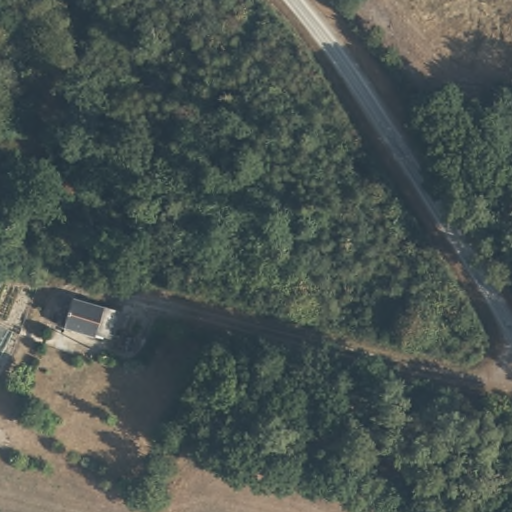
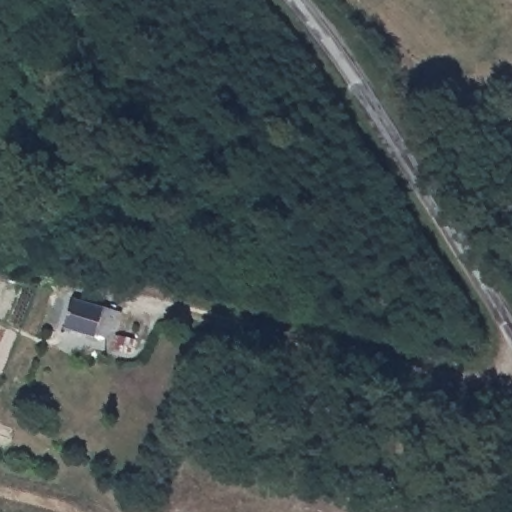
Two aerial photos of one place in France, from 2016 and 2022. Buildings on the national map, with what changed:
unchanged [(111,333),(97,330),(96,334),(66,324),(75,292),(120,305),(111,333)]
unchanged [(138,332),(133,345),(117,340),(121,327),(138,332)]
unchanged [(266,402),(261,440),(240,437),(247,399),(266,402)]

